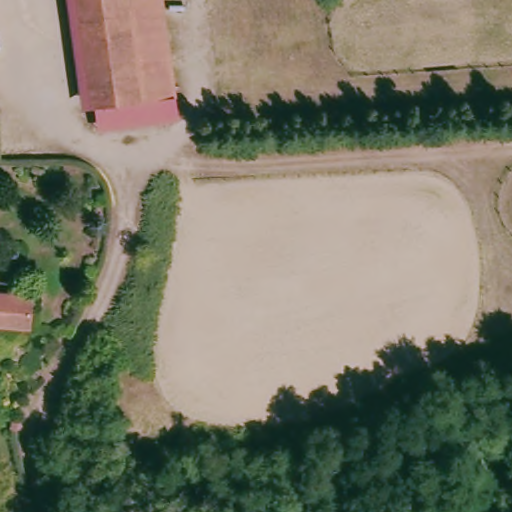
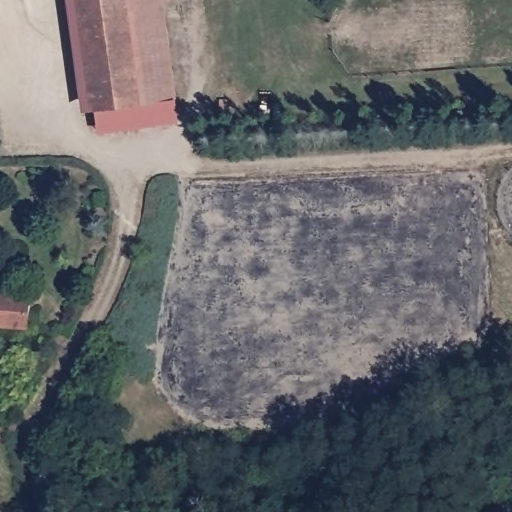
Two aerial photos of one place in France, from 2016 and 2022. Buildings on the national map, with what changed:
unchanged [(182,124),(99,134),(96,106),(82,106),(67,0),(168,0),(180,98),(182,124)]
unchanged [(0,327),(0,287),(36,288),(33,328),(0,327)]

